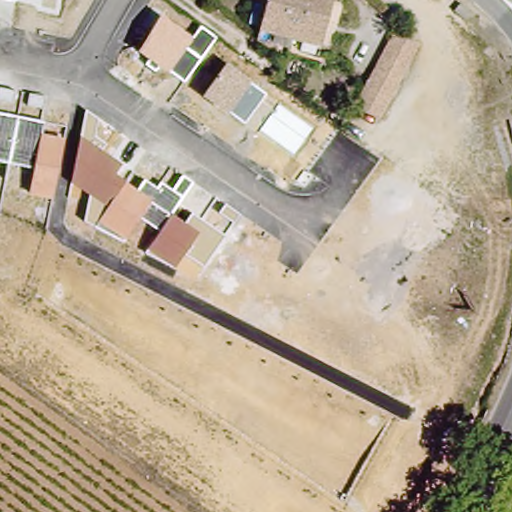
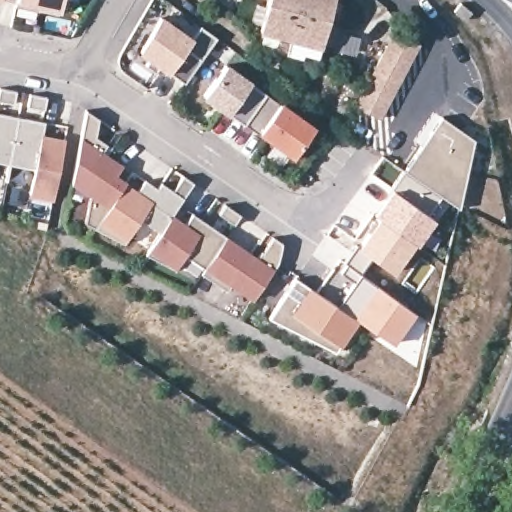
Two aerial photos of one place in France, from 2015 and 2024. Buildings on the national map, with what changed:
unchanged [(15,2),(5,0),(15,0),(15,2)]
new [(59,11),(15,2),(15,0),(61,0),(59,11)]
unchanged [(322,37),(260,22),(265,0),(331,0),(322,37)]
unchanged [(161,16),(191,37),(201,27),(216,37),(184,82),(168,72),(139,51),(161,16)]
unchanged [(260,22),(322,37),(318,54),(256,40),(260,22)]
unchanged [(414,36),(380,114),(355,103),(389,26),(414,36)]
unchanged [(228,63),(249,79),(267,94),(244,123),(228,112),(203,96),(228,63)]
new [(282,101),(315,125),(292,157),(260,134),(244,123),(267,94),(282,101)]
unchanged [(86,109),(97,117),(95,137),(108,144),(103,152),(123,164),(118,175),(138,189),(145,180),(157,188),(161,183),(172,190),(183,176),(193,184),(173,215),(185,223),(192,212),(225,236),(204,267),(185,255),(175,270),(144,253),(160,232),(140,219),(125,243),(85,221),(90,194),(71,182),(86,109)]
unchanged [(44,122),(42,134),(64,137),(53,199),(29,194),(34,167),(0,161),(0,114),(44,122)]
new [(405,170),(441,119),(472,140),(458,207),(405,170)]
new [(440,194),(426,212),(434,218),(416,245),(414,243),(392,272),(368,255),(359,270),(361,272),(360,273),(375,285),(376,283),(415,312),(391,342),(356,319),(337,306),(356,281),(340,270),(346,262),(344,260),(356,244),(357,244),(378,217),(373,213),(391,187),(405,170),(440,194)]
new [(225,236),(257,258),(261,251),(263,253),(273,236),(282,243),(277,263),(252,300),(230,285),(227,291),(201,273),(204,267),(225,236)]
new [(295,278),(356,319),(335,351),(273,309),(295,278)]

